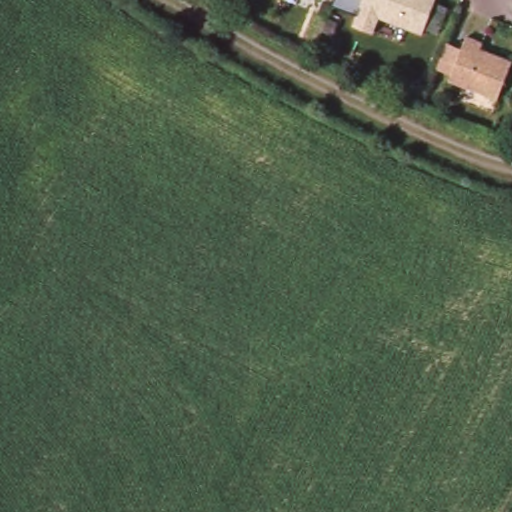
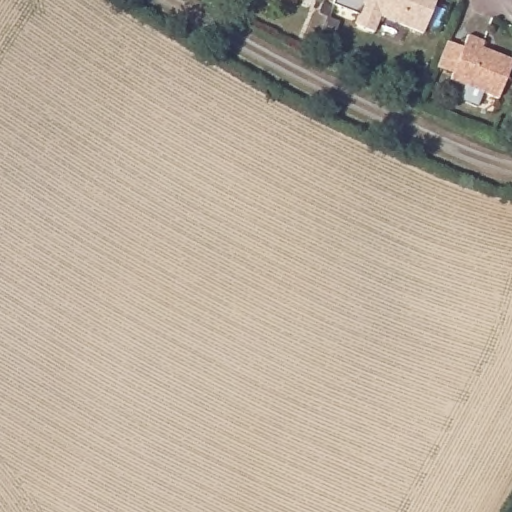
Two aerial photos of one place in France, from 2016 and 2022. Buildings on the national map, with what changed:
unchanged [(423,33),(380,16),(373,32),(354,24),(363,0),(436,0),(423,33)]
unchanged [(483,46),(481,52),(512,64),(512,69),(498,103),(465,90),(451,84),(468,40),(483,46)]

